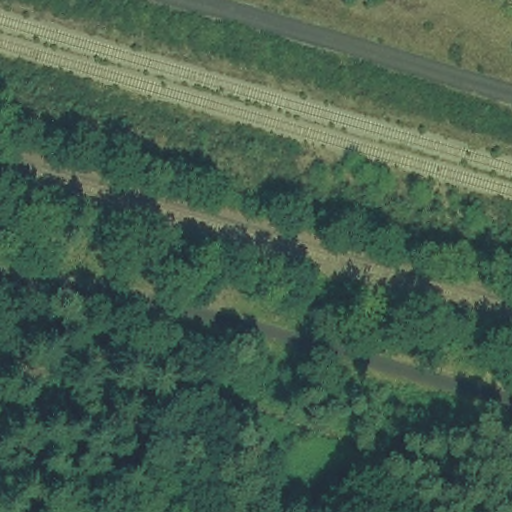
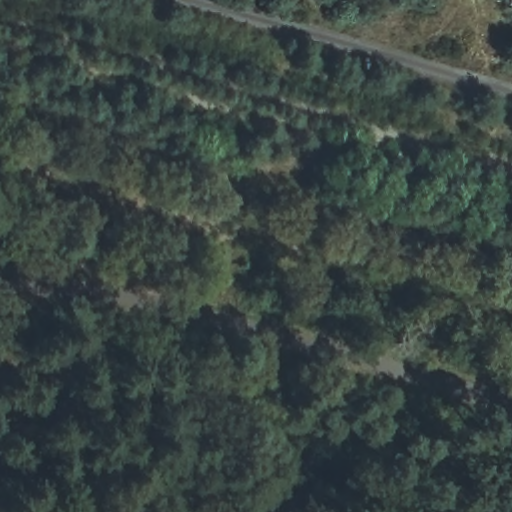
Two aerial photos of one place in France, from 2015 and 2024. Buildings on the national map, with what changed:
unchanged [(512,4),(511,4),(512,2),(512,4)]

